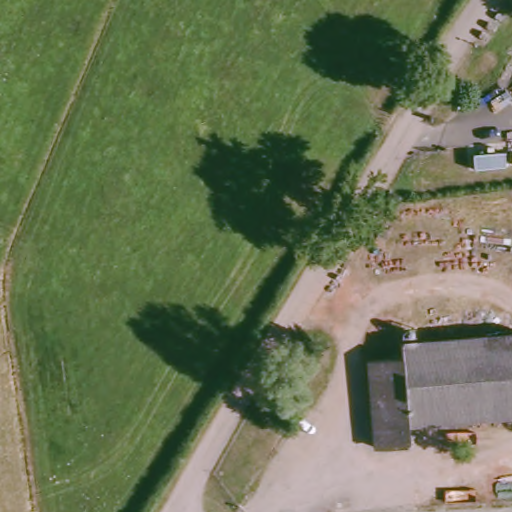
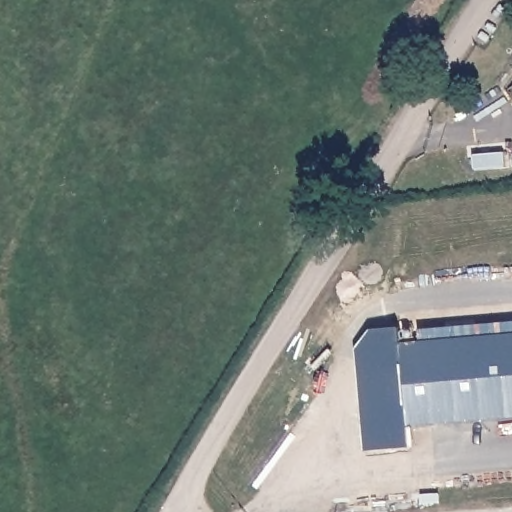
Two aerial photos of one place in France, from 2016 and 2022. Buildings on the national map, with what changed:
unchanged [(413,429),(413,449),(382,452),(377,364),(406,362),(408,349),(512,338),(512,420),(413,429)]

